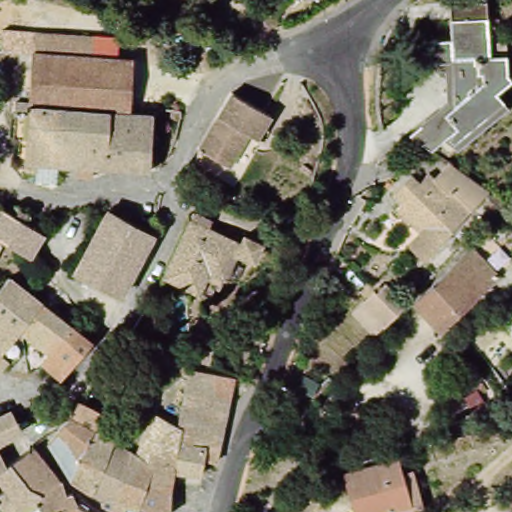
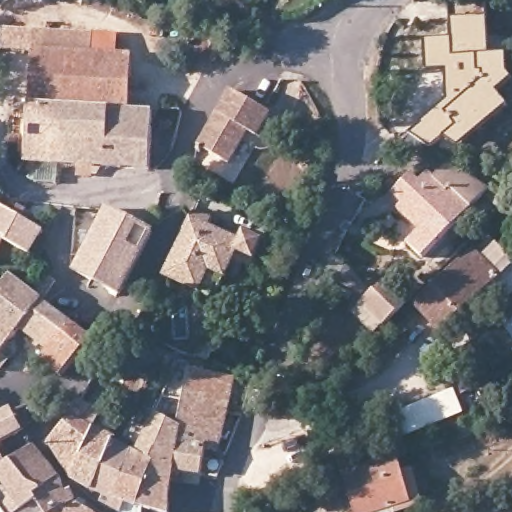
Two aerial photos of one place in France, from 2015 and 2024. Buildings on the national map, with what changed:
unchanged [(445,151),(436,145),(431,150),(408,134),(448,102),(445,72),(427,74),(425,44),(452,41),(451,5),(487,2),(490,45),(506,43),(508,75),(512,79),(512,83),(498,94),(505,102),(510,109),(451,155),(445,151)]
unchanged [(37,30),(98,34),(97,54),(36,50),(37,30)]
unchanged [(25,136),(20,136),(21,111),(21,99),(34,99),(36,50),(97,54),(138,56),(134,110),(158,111),(156,168),(41,162),(40,171),(30,171),(30,161),(23,161),(25,136)]
unchanged [(275,114),(260,139),(251,134),(231,164),(201,147),(235,90),(275,114)]
unchanged [(424,259),(410,245),(426,229),(393,196),(412,177),(420,184),(430,174),(436,179),(451,164),(490,191),(424,259)]
unchanged [(1,205),(43,231),(31,251),(30,255),(3,240),(0,246),(0,207),(1,205)]
unchanged [(118,296),(105,288),(76,272),(108,209),(152,232),(118,296)]
unchanged [(195,210),(211,219),(209,225),(240,240),(245,234),(263,243),(255,260),(235,250),(213,300),(163,275),(195,210)]
unchanged [(473,250),(498,277),(443,332),(416,305),(473,250)]
unchanged [(14,281),(48,307),(97,345),(65,382),(47,369),(45,365),(52,355),(26,333),(6,360),(13,366),(4,377),(0,374),(0,300),(14,281)]
unchanged [(387,325),(364,304),(375,290),(380,294),(387,285),(408,303),(387,325)]
unchanged [(378,335),(390,345),(381,356),(370,345),(378,335)]
unchanged [(137,451),(156,413),(178,425),(188,368),(235,377),(217,460),(204,458),(200,473),(172,470),(171,488),(125,470),(132,448),(137,451)]
new [(464,413),(417,431),(408,408),(455,390),(464,413)]
unchanged [(102,415),(96,428),(112,437),(115,438),(91,490),(71,479),(48,441),(71,417),(76,403),(102,415)]
unchanged [(11,409),(12,411),(22,428),(0,443),(0,415),(11,409)]
unchanged [(115,438),(132,448),(125,470),(171,488),(170,512),(152,512),(143,510),(136,507),(136,509),(126,505),(123,512),(117,512),(90,496),(91,490),(115,438)]
unchanged [(60,477),(64,492),(71,492),(77,503),(61,512),(42,512),(12,460),(33,446),(60,477)]
unchanged [(6,463),(8,466),(0,471),(0,451),(6,463)]
unchanged [(0,505),(0,494),(5,490),(8,489),(0,475),(0,471),(8,466),(6,463),(12,460),(42,512),(5,512),(0,505)]
unchanged [(398,465),(403,477),(413,475),(425,512),(356,512),(346,480),(398,465)]
unchanged [(8,489),(5,490),(1,485),(0,485),(0,475),(8,489)]
unchanged [(77,503),(80,499),(101,512),(61,512),(77,503)]
unchanged [(5,512),(0,512),(0,505),(5,512)]

